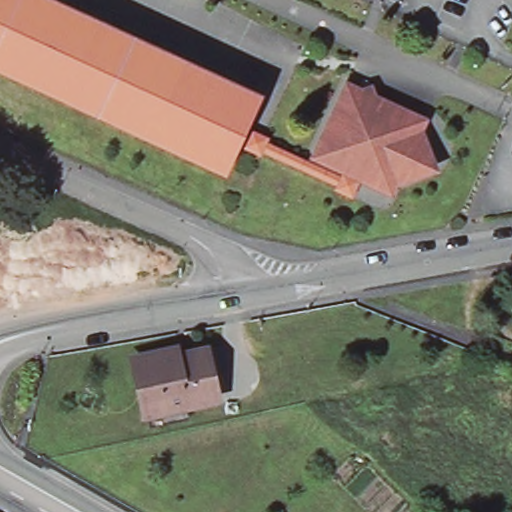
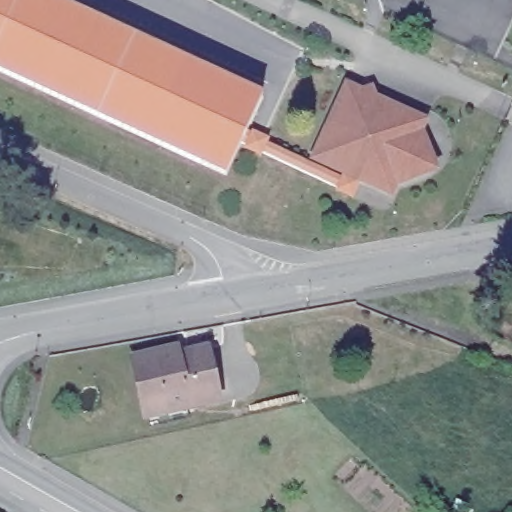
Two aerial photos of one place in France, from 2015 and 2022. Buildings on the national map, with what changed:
unchanged [(52,0),(264,98),(250,129),(242,146),(228,177),(0,71),(0,0),(52,0)]
unchanged [(427,121),(433,174),(392,195),(360,180),(315,159),(350,85),(427,121)]
unchanged [(250,129),(315,159),(360,180),(352,197),(242,146),(250,129)]
unchanged [(152,421),(150,413),(140,358),(162,353),(180,351),(182,358),(212,352),(220,396),(190,402),(192,413),(152,421)]

